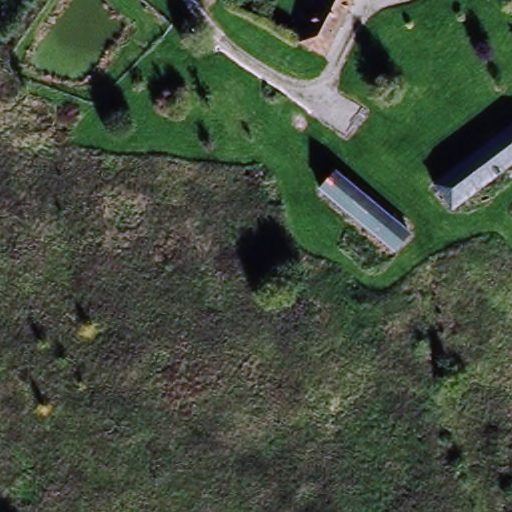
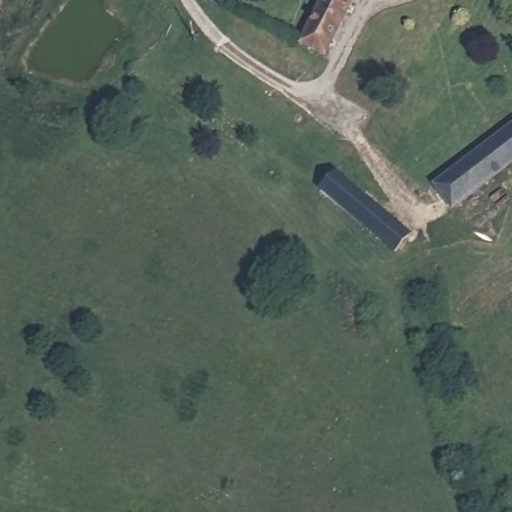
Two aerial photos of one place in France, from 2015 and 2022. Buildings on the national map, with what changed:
unchanged [(321,60),(298,48),(322,0),(350,0),(321,60)]
unchanged [(512,130),(512,168),(449,213),(431,186),(512,130)]
unchanged [(335,177),(408,237),(393,256),(320,195),(335,177)]

